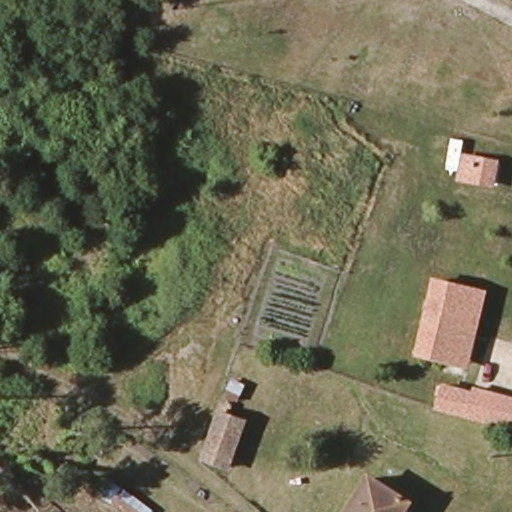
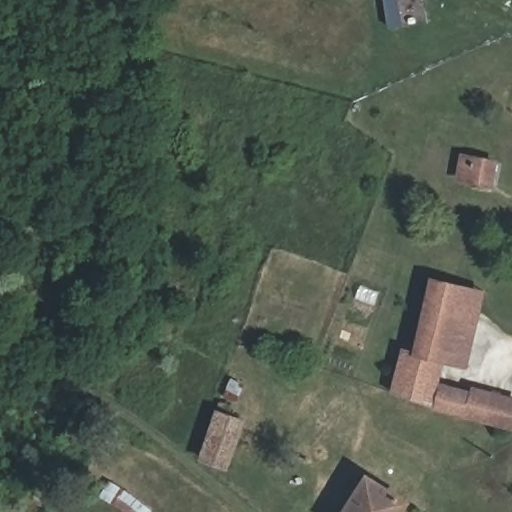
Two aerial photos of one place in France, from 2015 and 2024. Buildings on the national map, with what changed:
unchanged [(477,146),(476,157),(498,162),(493,189),(460,181),(465,144),(477,146)]
unchanged [(444,365),(418,358),(434,278),(458,286),(444,365)]
unchanged [(481,292),(465,370),(444,365),(458,286),(481,292)]
new [(418,358),(444,365),(446,365),(441,385),(439,385),(434,406),(391,392),(402,347),(420,352),(418,358)]
unchanged [(439,385),(471,393),(475,386),(512,396),(512,430),(433,410),(439,385)]
unchanged [(219,471),(203,458),(220,412),(242,421),(223,474),(219,471)]
unchanged [(151,512),(117,512),(94,495),(101,481),(151,512)]
unchanged [(402,512),(350,512),(371,481),(407,504),(402,512)]

